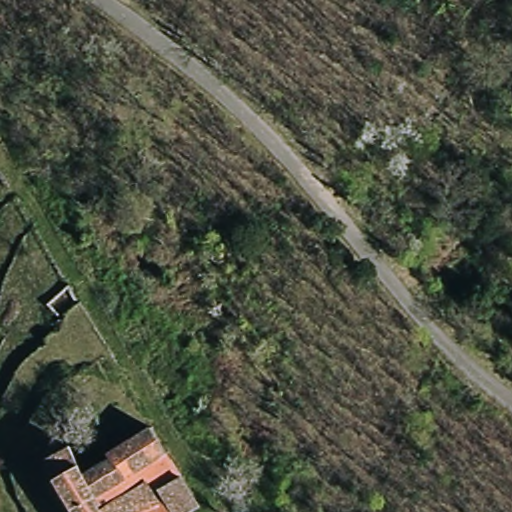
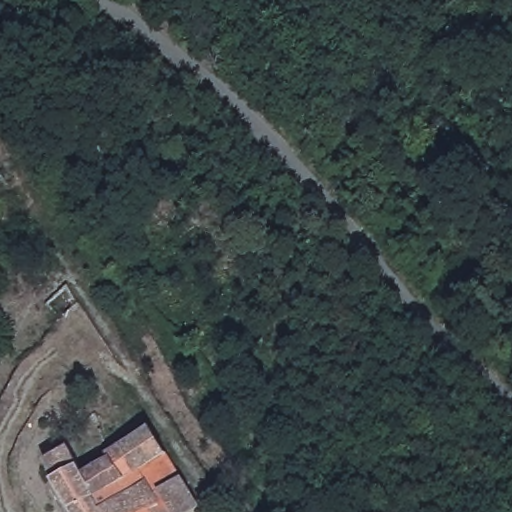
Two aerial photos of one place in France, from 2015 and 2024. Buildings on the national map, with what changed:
unchanged [(179,512),(158,512),(158,511),(156,512),(64,512),(44,474),(69,460),(91,482),(108,448),(110,451),(116,449),(141,426),(185,494),(191,505),(179,512)]

